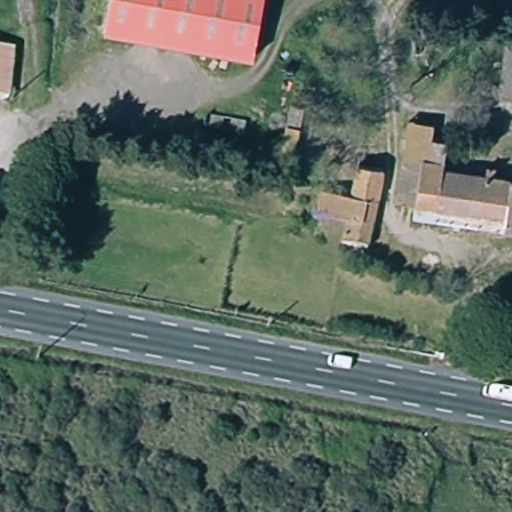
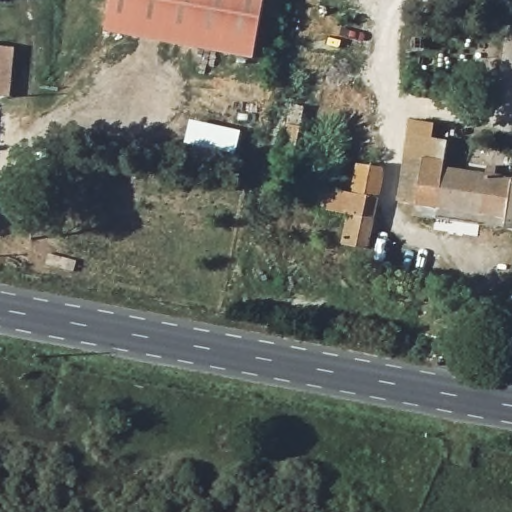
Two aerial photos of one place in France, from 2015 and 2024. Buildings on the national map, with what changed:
unchanged [(104,32),(110,0),(262,0),(251,61),(104,32)]
unchanged [(512,35),(512,97),(499,96),(509,35),(512,35)]
unchanged [(17,96),(0,95),(0,45),(23,46),(17,96)]
unchanged [(299,120),(294,165),(272,162),(280,117),(299,120)]
unchanged [(402,215),(415,117),(445,120),(437,159),(512,173),(512,234),(402,215)]
unchanged [(351,191),(357,164),(384,170),(367,252),(338,245),(344,212),(319,205),(321,185),(351,191)]

